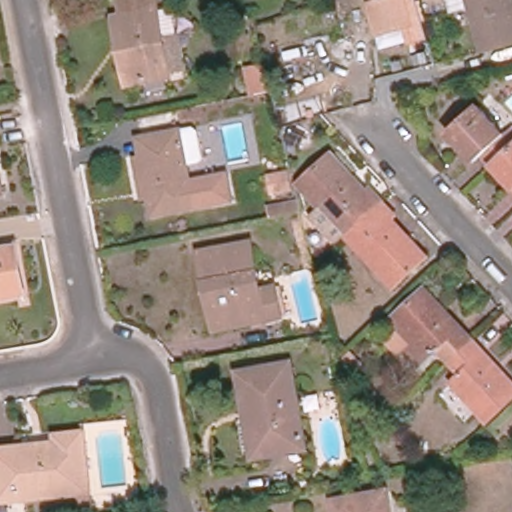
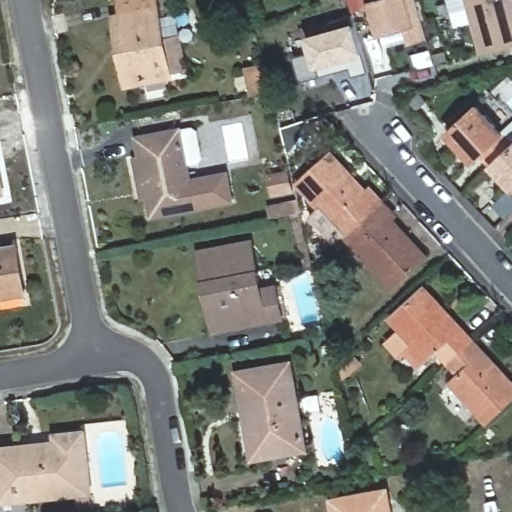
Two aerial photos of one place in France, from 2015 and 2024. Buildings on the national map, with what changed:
unchanged [(171,81),(136,87),(128,89),(115,22),(124,21),(126,21),(122,2),(132,1),(131,0),(156,0),(165,47),(180,44),(186,73),(170,76),(171,81)]
unchanged [(378,34),(372,12),(359,17),(355,3),(365,0),(371,0),(372,5),(388,0),(404,0),(412,25),(378,34)]
unchanged [(508,37),(511,48),(490,54),(487,43),(481,45),(468,0),(512,0),(512,36),(508,37)]
new [(354,75),(351,67),(302,81),(296,55),(311,51),(307,35),(357,21),(366,53),(370,70),(354,75)]
unchanged [(512,141),(512,147),(510,149),(492,166),(482,155),(475,162),(448,132),(478,105),(512,141)]
unchanged [(136,159),(142,158),(145,157),(142,138),(192,128),(198,132),(203,157),(200,163),(186,166),(189,182),(227,175),(232,200),(154,216),(150,196),(144,197),(136,159)]
unchanged [(492,166),(510,149),(512,147),(512,187),(492,166)]
unchanged [(383,202),(356,227),(344,215),(335,224),(298,185),(332,154),(352,176),(348,180),(363,197),(372,189),(383,202)]
unchanged [(0,183),(2,193),(0,193),(0,183)]
unchanged [(427,257),(394,288),(358,249),(367,241),(356,227),(383,202),(396,215),(387,222),(402,239),(407,235),(427,257)]
unchanged [(282,317),(215,330),(201,252),(252,242),(261,290),(276,287),(282,317)]
unchanged [(29,297),(0,302),(0,256),(21,252),(29,297)]
unchanged [(457,332),(461,327),(473,341),(449,363),(437,350),(419,367),(404,350),(412,342),(392,320),(426,289),(446,311),(442,315),(457,332)]
unchanged [(485,353),(481,357),(496,374),(500,370),(512,383),(512,400),(487,423),(452,385),(461,376),(449,363),(473,341),(485,353)]
unchanged [(249,408),(242,374),(289,366),(303,447),(267,453),(257,455),(249,408)]
unchanged [(0,507),(0,475),(2,475),(0,463),(0,455),(62,448),(62,441),(89,438),(95,496),(0,507)]
unchanged [(334,507),(386,497),(389,512),(335,512),(334,507)]
unchanged [(97,512),(85,512),(84,502),(96,500),(97,512)]

